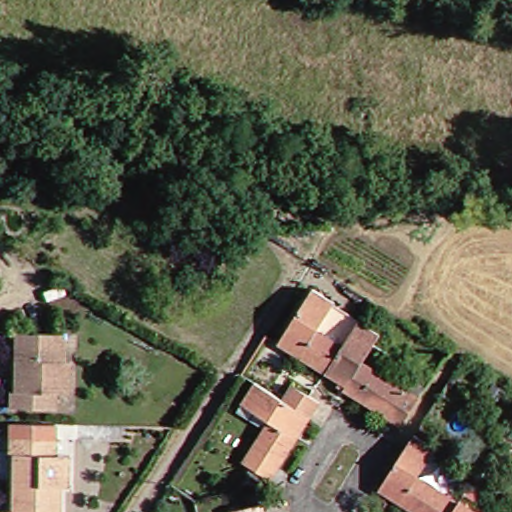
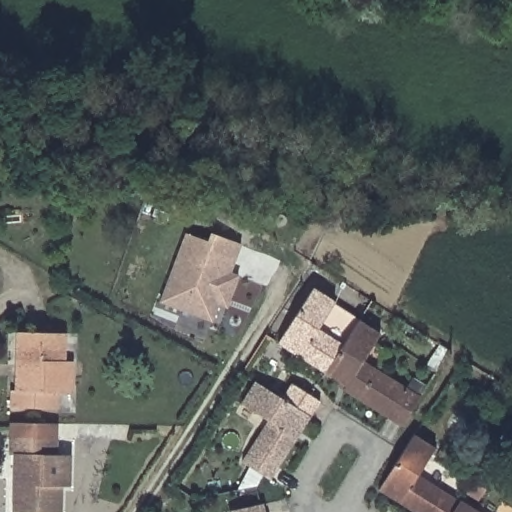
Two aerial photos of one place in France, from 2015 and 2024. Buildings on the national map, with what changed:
new [(227,308),(219,305),(213,322),(161,302),(186,233),(208,241),(211,233),(241,244),(230,273),(239,276),(227,308)]
unchanged [(322,374),(277,344),(309,287),(330,301),(312,332),(337,351),(322,374)]
new [(337,351),(312,332),(330,301),(355,321),(337,351)]
unchanged [(373,333),(359,363),(413,399),(397,425),(322,374),(337,351),(355,321),(373,333)]
unchanged [(48,393),(48,408),(1,408),(1,392),(11,392),(12,366),(6,366),(7,332),(54,333),(53,361),(61,362),(61,384),(61,393),(48,393)]
unchanged [(241,472),(271,424),(246,409),(259,386),(283,400),(285,401),(291,391),(312,404),(306,414),(261,486),(241,472)]
unchanged [(65,466),(65,489),(56,490),(56,512),(9,512),(10,483),(14,483),(14,460),(5,460),(6,428),(50,428),(50,458),(65,458),(65,466)]
unchanged [(410,476),(452,502),(446,512),(413,512),(377,489),(409,439),(427,450),(410,476)]
unchanged [(467,512),(446,512),(452,502),(467,512)]
unchanged [(259,512),(245,512),(259,509),(259,512)]

